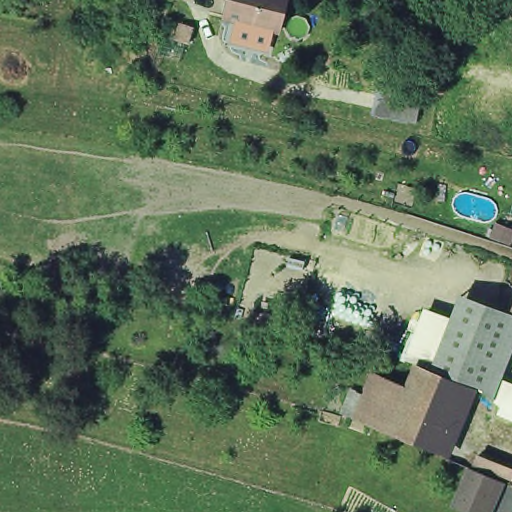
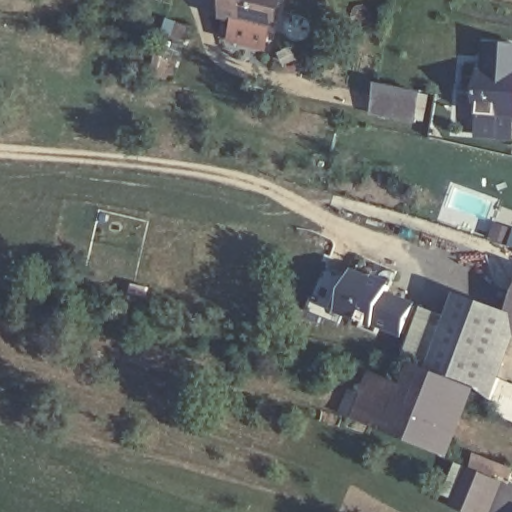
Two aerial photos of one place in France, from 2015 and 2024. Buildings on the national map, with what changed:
unchanged [(252,37),(218,16),(227,0),(266,0),(272,4),(271,6),(252,37)]
new [(477,137),(477,117),(481,70),(484,71),(484,44),(512,46),(512,141),(477,137)]
unchanged [(366,92),(414,97),(411,132),(362,122),(366,92)]
demolished [(511,142),(512,135),(512,142),(511,142)]
new [(374,327),(374,329),(338,314),(334,312),(340,291),(346,293),(355,270),(376,277),(376,275),(394,283),(389,292),(417,304),(403,338),(374,327)]
unchanged [(494,394),(477,387),(409,362),(401,359),(422,306),(449,316),(458,293),(507,312),(512,300),(512,343),(494,394)]
unchanged [(348,385),(361,391),(370,370),(403,382),(409,362),(477,387),(449,456),(338,413),(348,385)]
demolished [(512,379),(512,421),(498,414),(499,411),(501,407),(512,379)]
unchanged [(494,480),(468,470),(472,460),(509,475),(507,483),(495,477),(494,480)]
unchanged [(474,475),(483,479),(493,483),(481,512),(460,512),(452,508),(467,473),(474,475)]

